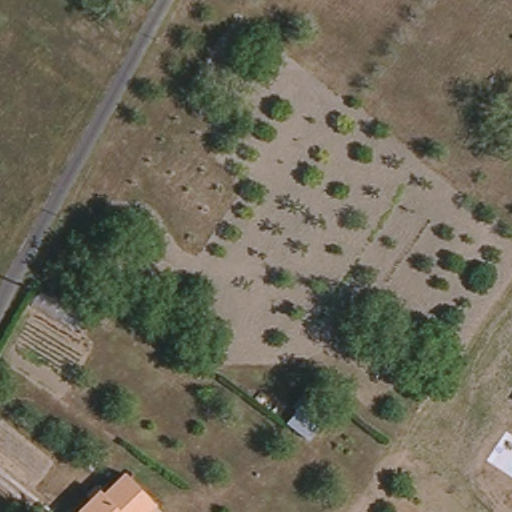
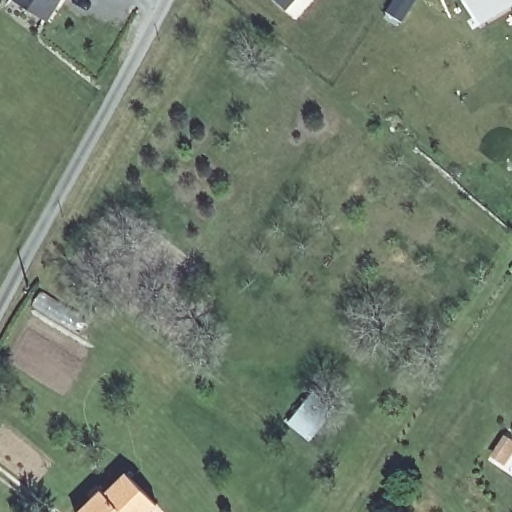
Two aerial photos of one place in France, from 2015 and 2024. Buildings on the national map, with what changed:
new [(14,0),(62,0),(49,22),(14,0)]
new [(276,0),(293,0),(286,9),(276,0)]
new [(416,0),(401,22),(384,11),(391,0),(416,0)]
new [(462,0),(512,0),(512,6),(478,26),(462,0)]
unchanged [(99,494),(102,497),(125,476),(154,507),(148,512),(79,512),(99,494)]

